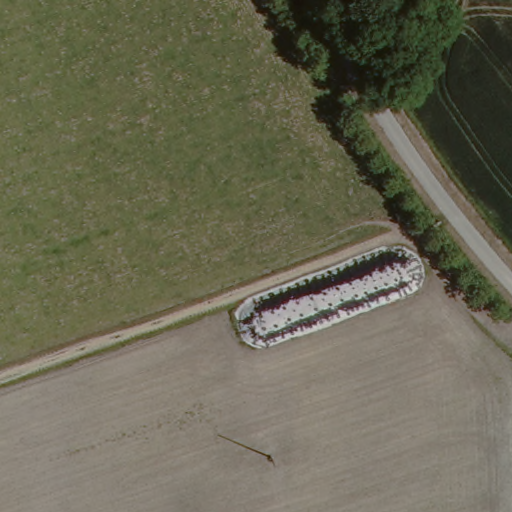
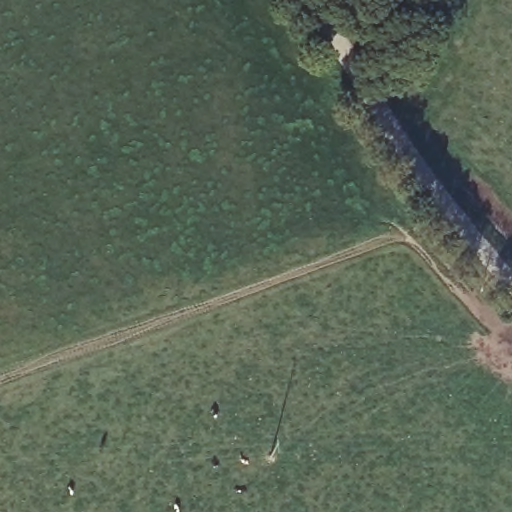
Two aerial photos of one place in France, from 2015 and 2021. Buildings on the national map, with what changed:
[]

